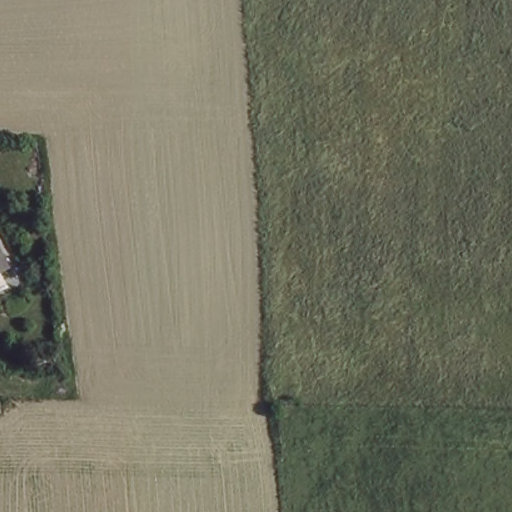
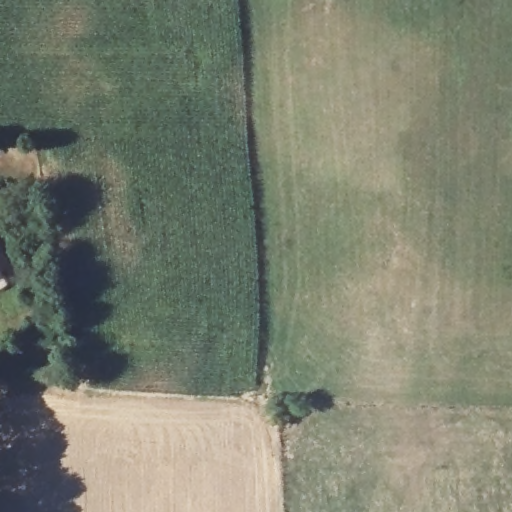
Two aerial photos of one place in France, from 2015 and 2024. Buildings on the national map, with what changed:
unchanged [(1,254),(10,272),(0,277),(0,254),(1,254)]

